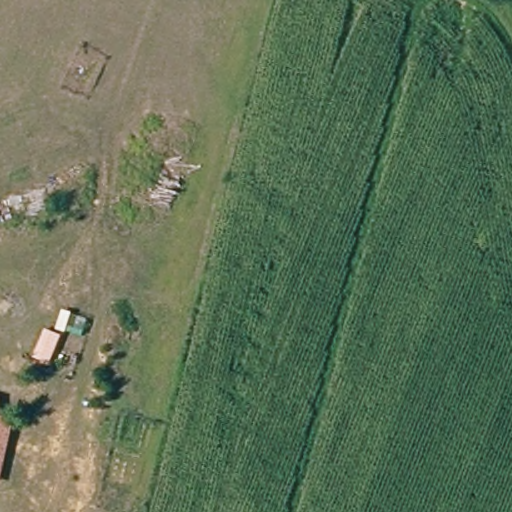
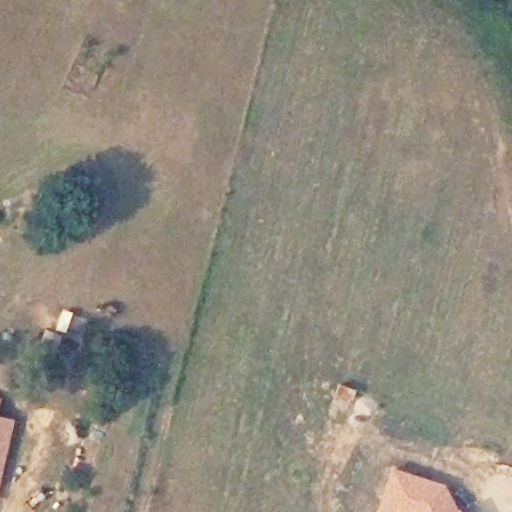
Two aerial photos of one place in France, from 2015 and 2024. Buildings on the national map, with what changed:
new [(0,476),(0,417),(12,419),(0,476)]
new [(445,483),(459,512),(375,512),(390,466),(445,483)]

